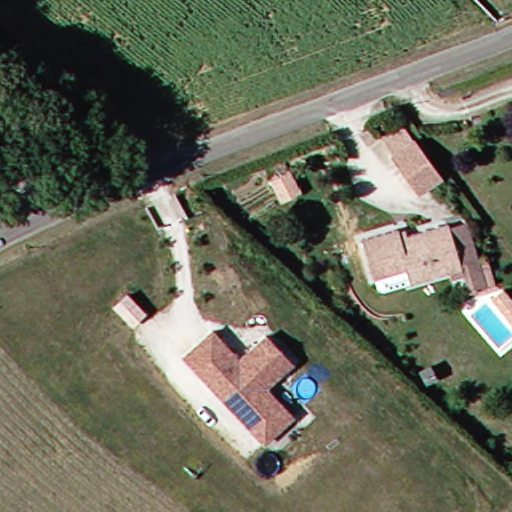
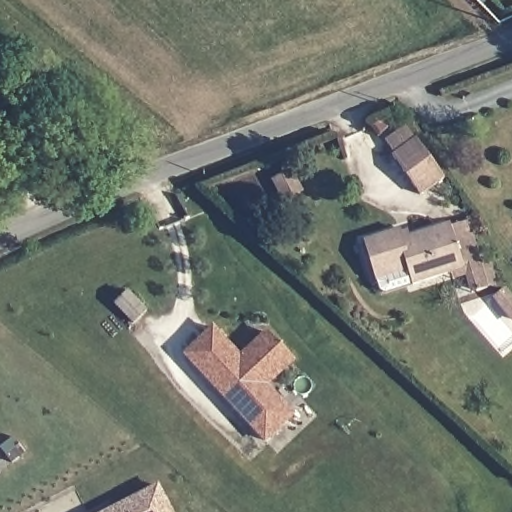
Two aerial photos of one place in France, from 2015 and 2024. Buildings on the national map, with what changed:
unchanged [(446,178),(419,195),(397,161),(422,145),(446,178)]
unchanged [(304,192),(281,204),(270,180),(291,170),(304,192)]
unchanged [(473,222),(494,288),(477,293),(472,276),(458,280),(456,272),(466,268),(454,227),(473,222)]
unchanged [(411,227),(414,237),(454,227),(466,268),(456,272),(414,285),(409,270),(375,280),(362,238),(402,226),(403,230),(411,227)]
unchanged [(183,350),(212,325),(239,354),(266,330),(292,357),(265,382),(292,412),(263,437),(234,406),(229,400),(183,350)]
new [(121,508),(160,487),(173,512),(113,512),(121,508)]

